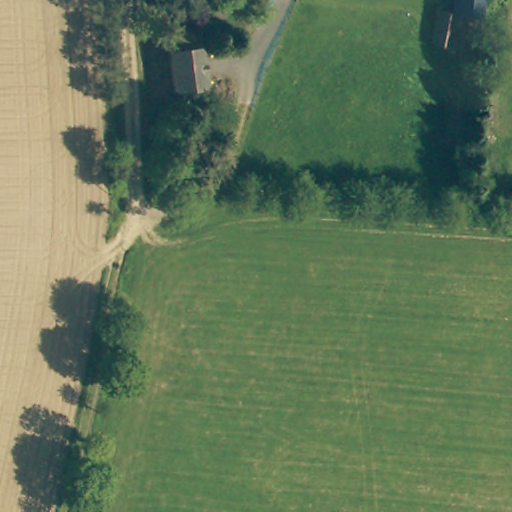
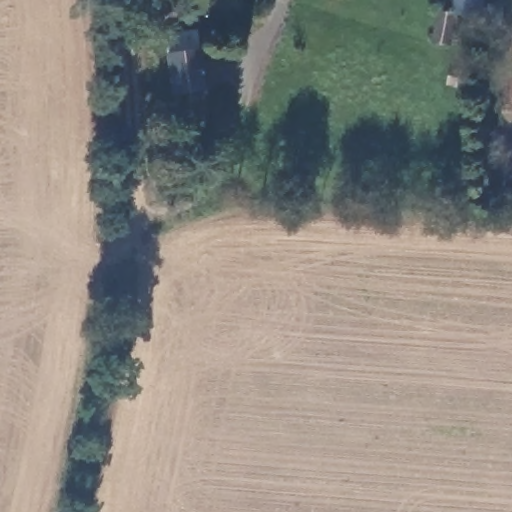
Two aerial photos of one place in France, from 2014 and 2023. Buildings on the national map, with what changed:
unchanged [(457,0),(482,0),(480,19),(455,16),(457,0)]
unchanged [(455,21),(451,51),(430,48),(434,19),(455,21)]
unchanged [(208,49),(215,88),(185,93),(179,54),(208,49)]

